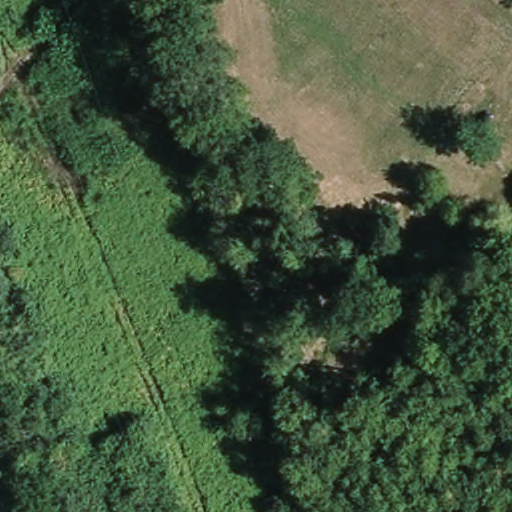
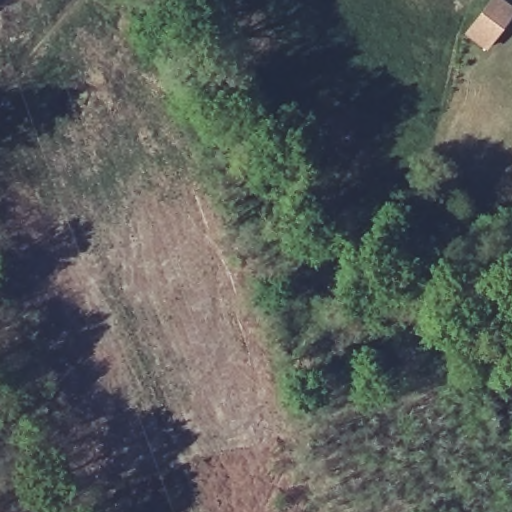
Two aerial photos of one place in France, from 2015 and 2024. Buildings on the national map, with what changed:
new [(465,31),(490,0),(498,0),(511,10),(483,46),(465,32),(465,31)]

